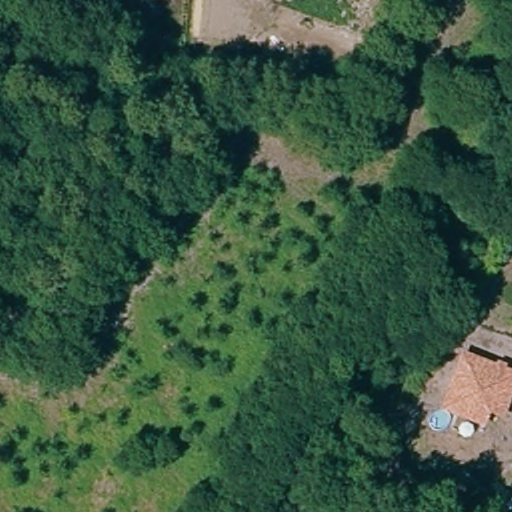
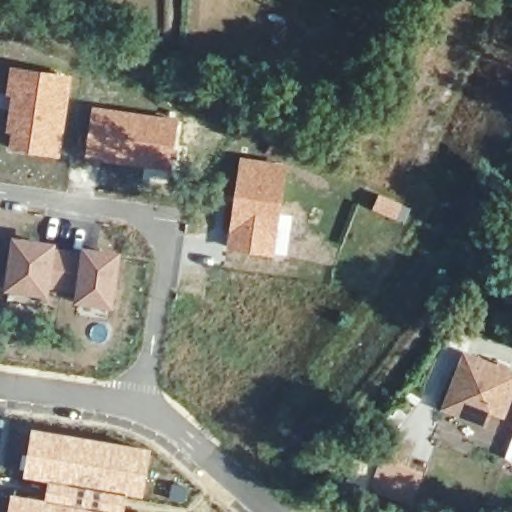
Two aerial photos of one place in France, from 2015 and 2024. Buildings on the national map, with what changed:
new [(9,96),(5,96),(10,65),(73,75),(59,160),(7,150),(9,134),(5,133),(9,96)]
new [(91,105),(180,118),(175,172),(82,157),(91,105)]
new [(239,155),(289,163),(281,212),(293,214),(287,258),(224,250),(239,155)]
new [(11,235),(58,244),(57,246),(79,250),(75,272),(62,270),(60,277),(55,276),(49,298),(2,290),(11,235)]
new [(75,272),(79,250),(80,245),(122,251),(112,310),(71,302),(75,272)]
unchanged [(512,370),(512,401),(505,420),(491,415),(485,427),(440,410),(464,351),(512,370)]
new [(10,492),(43,498),(46,481),(21,477),(30,427),(150,447),(144,497),(126,495),(124,511),(127,512),(7,512),(10,492)]
new [(384,453),(424,470),(411,505),(369,489),(384,453)]

